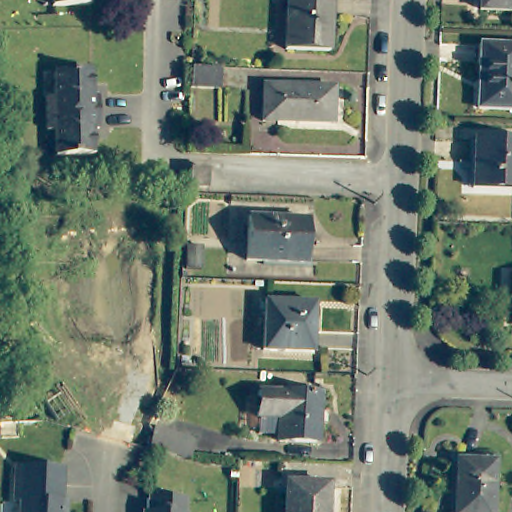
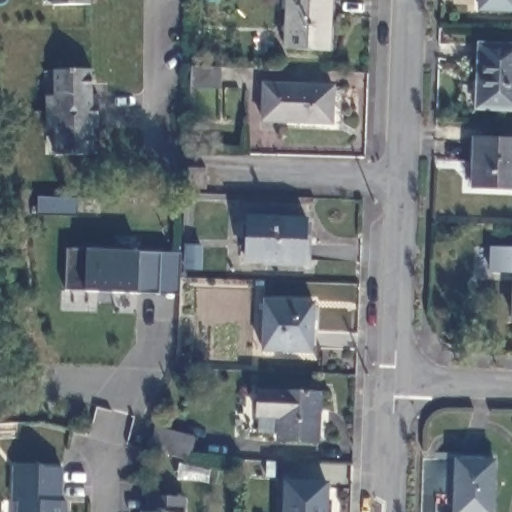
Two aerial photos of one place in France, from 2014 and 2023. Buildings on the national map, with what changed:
unchanged [(59,2),(59,0),(96,0),(96,1),(59,2)]
unchanged [(290,46),(291,0),(333,0),(332,47),(290,46)]
unchanged [(485,0),(512,0),(512,12),(485,11),(485,0)]
unchanged [(512,106),(481,105),(482,41),(512,42),(512,106)]
unchanged [(227,63),(227,83),(197,82),(198,62),(227,63)]
unchanged [(94,92),(100,91),(100,123),(96,123),(96,150),(59,151),(59,125),(52,125),(51,93),(57,93),(57,66),(93,65),(94,92)]
unchanged [(337,85),(336,121),(265,118),(266,82),(337,85)]
unchanged [(512,191),(475,190),(476,141),(512,142),(512,191)]
unchanged [(206,177),(205,197),(190,196),(191,176),(206,177)]
unchanged [(315,216),(315,258),(254,257),(255,214),(315,216)]
new [(87,249),(138,251),(160,253),(158,293),(138,292),(84,291),(67,289),(67,249),(87,249)]
unchanged [(319,302),(317,350),(268,348),(270,300),(319,302)]
unchanged [(325,392),(323,437),(283,435),(284,415),(260,414),(261,390),(325,392)]
unchanged [(1,437),(0,438),(0,424),(0,423),(1,437)]
unchanged [(184,451),(159,443),(166,423),(185,429),(205,436),(203,441),(198,455),(184,451)]
unchanged [(496,457),(494,512),(458,512),(459,455),(496,457)]
unchanged [(71,466),(70,500),(75,500),(75,512),(28,512),(28,500),(22,500),(23,465),(71,466)]
unchanged [(330,483),(329,512),(286,512),(287,481),(330,483)]
unchanged [(189,499),(189,512),(154,512),(154,498),(189,499)]

